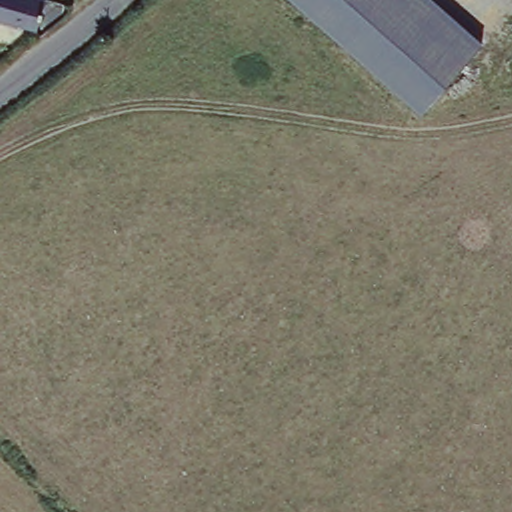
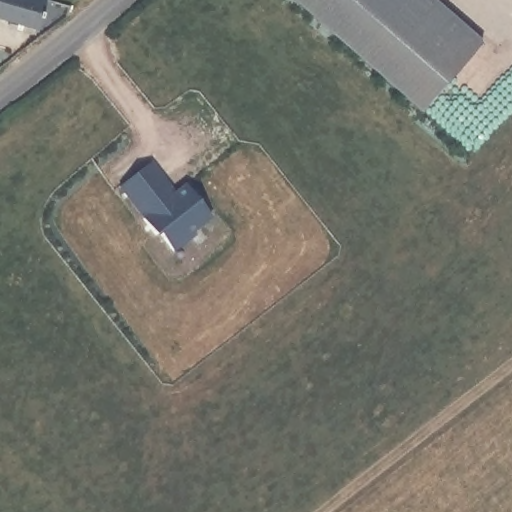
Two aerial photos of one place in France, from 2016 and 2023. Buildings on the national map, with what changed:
unchanged [(0,19),(0,0),(45,0),(37,28),(0,19)]
unchanged [(420,109),(292,0),(436,0),(482,42),(420,109)]
new [(175,192),(184,185),(211,217),(194,231),(196,235),(175,251),(160,236),(157,237),(143,220),(145,217),(120,188),(150,162),(175,192)]

